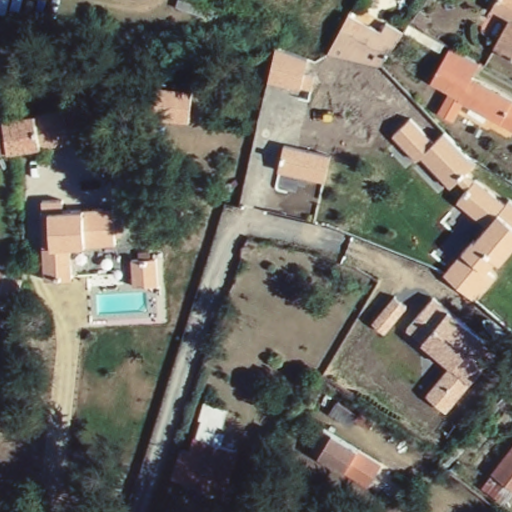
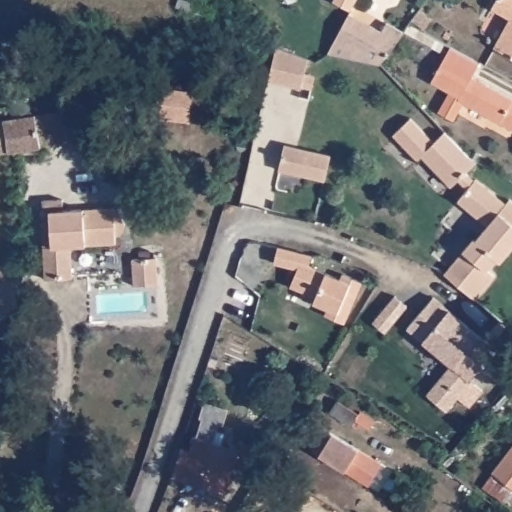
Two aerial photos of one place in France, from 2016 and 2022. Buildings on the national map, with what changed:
new [(334,0),(357,0),(352,10),(334,0)]
unchanged [(503,0),(512,0),(512,21),(497,13),(503,0)]
unchanged [(384,31),(389,23),(405,33),(383,71),(334,46),(352,15),(384,31)]
unchanged [(512,29),(512,59),(500,52),(512,29)]
unchanged [(277,46),(308,58),(304,71),(314,75),(311,90),(269,82),(277,46)]
unchanged [(475,81),(512,102),(512,133),(467,107),(457,125),(442,116),(454,95),(435,85),(455,51),(483,67),(475,81)]
unchanged [(196,88),(194,118),(159,116),(161,86),(196,88)]
unchanged [(93,140),(14,153),(9,154),(3,121),(7,120),(87,107),(89,116),(91,116),(93,116),(96,119),(97,121),(97,124),(96,126),(94,128),(91,129),(93,140)]
unchanged [(463,252),(475,238),(477,239),(487,226),(458,202),(467,190),(458,178),(449,188),(421,157),(417,161),(392,135),(410,119),(435,142),(444,133),(475,164),(466,172),(476,180),(506,204),(509,200),(512,202),(512,248),(500,263),(495,259),(486,271),(495,277),(475,300),(444,275),(463,252)]
unchanged [(0,155),(0,122),(3,121),(9,154),(0,155)]
unchanged [(285,146),(329,155),(322,181),(279,171),(285,146)]
unchanged [(128,234),(126,237),(124,239),(120,239),(121,247),(75,250),(77,282),(68,282),(52,283),(48,218),(118,213),(119,222),(123,222),(125,224),(128,227),(129,231),(128,234)]
new [(328,315),(330,309),(315,303),(317,297),(291,286),(299,269),(276,261),(281,246),(313,255),(310,265),(327,272),(352,282),(353,277),(364,282),(346,322),(328,315)]
unchanged [(140,259),(140,252),(150,251),(150,258),(155,258),(156,283),(134,284),(133,261),(140,259)]
unchanged [(3,294),(0,293),(0,266),(9,269),(3,294)]
unchanged [(374,322),(395,296),(408,307),(385,334),(374,322)]
unchanged [(427,395),(450,366),(422,342),(423,340),(407,330),(434,297),(451,310),(449,311),(495,347),(497,351),(447,411),(427,395)]
unchanged [(384,418),(378,427),(362,417),(355,427),(333,413),(347,391),(384,418)]
unchanged [(207,425),(189,486),(174,481),(189,434),(196,437),(201,419),(199,418),(205,401),(228,409),(221,429),(207,425)]
unchanged [(230,498),(189,486),(207,425),(224,430),(218,448),(243,456),(230,498)]
unchanged [(381,465),(369,487),(312,453),(325,431),(381,465)]
unchanged [(512,447),(512,482),(495,469),(512,447)]

